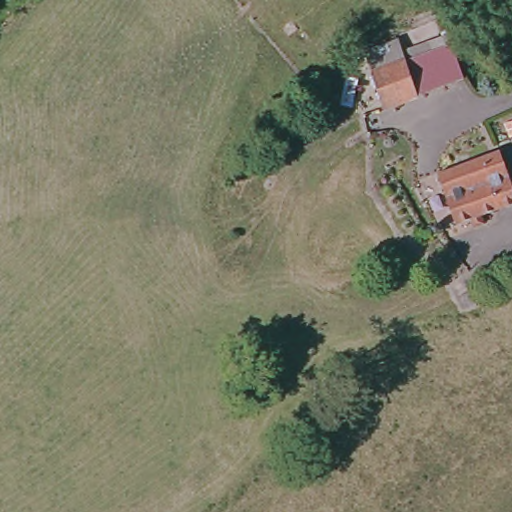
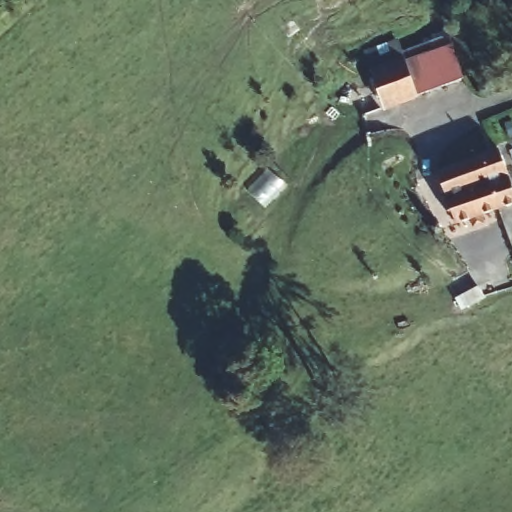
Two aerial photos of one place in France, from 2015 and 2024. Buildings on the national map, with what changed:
unchanged [(457,75),(418,90),(405,56),(446,42),(457,75)]
unchanged [(395,60),(407,94),(384,103),(372,69),(395,60)]
unchanged [(435,172),(485,155),(501,149),(512,180),(512,202),(504,205),(453,225),(444,196),(435,172)]
unchanged [(440,220),(444,230),(433,235),(429,225),(440,220)]
unchanged [(495,303),(489,288),(506,280),(512,293),(495,303)]

